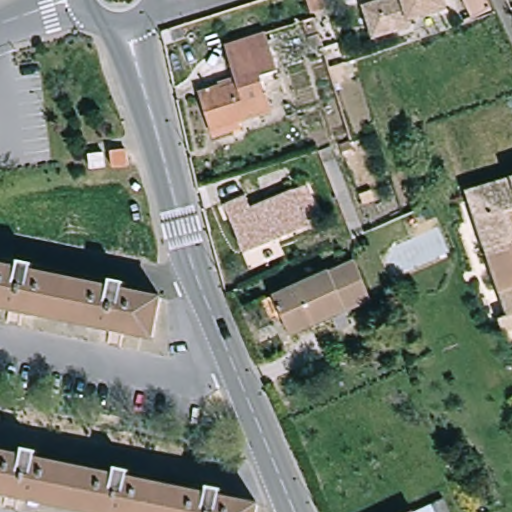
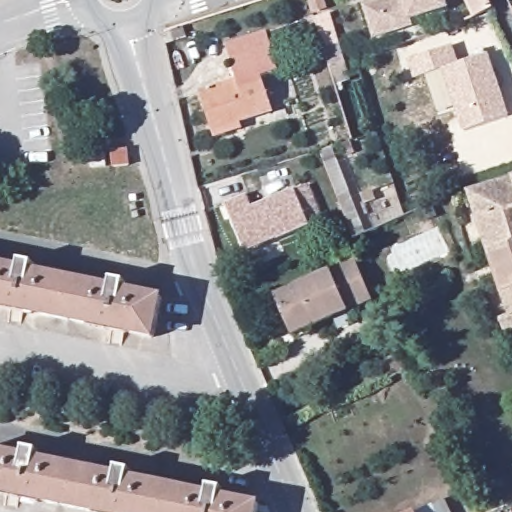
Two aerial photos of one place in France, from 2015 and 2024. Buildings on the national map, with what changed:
unchanged [(324,7),(314,10),(310,0),(321,0),(324,7)]
unchanged [(379,38),(369,5),(382,1),(387,0),(450,0),(453,8),(415,21),(417,26),(379,38)]
unchanged [(499,7),(479,17),(471,0),(495,0),(499,7)]
unchanged [(316,17),(320,33),(326,53),(320,55),(317,47),(312,49),(303,22),(316,17)]
unchanged [(271,33),(283,70),(266,76),(277,111),(217,130),(206,91),(225,85),(224,82),(242,76),(232,45),(271,33)]
new [(510,116),(464,130),(442,68),(415,78),(408,59),(453,45),(460,63),(487,51),(510,116)]
unchanged [(343,151),(341,146),(352,147),(343,151)]
new [(319,152),(332,147),(366,233),(353,238),(319,152)]
unchanged [(127,149),(129,165),(114,167),(112,150),(127,149)]
unchanged [(105,152),(106,166),(92,168),(90,154),(105,152)]
unchanged [(296,166),(301,180),(294,183),(289,168),(296,166)]
unchanged [(512,178),(512,240),(510,240),(488,245),(470,190),(512,178)]
unchanged [(249,255),(232,203),(250,195),(254,205),(299,190),(317,231),(249,255)]
unchanged [(510,240),(512,240),(512,286),(502,290),(488,245),(510,240)]
unchanged [(353,310),(297,336),(280,295),(335,270),(360,259),(368,277),(378,300),(353,310)]
unchanged [(0,310),(0,261),(129,287),(128,296),(164,302),(158,342),(0,310)]
unchanged [(512,286),(512,328),(505,331),(500,317),(510,313),(502,290),(512,286)]
unchanged [(89,512),(0,494),(0,453),(18,457),(20,448),(216,489),(215,497),(253,504),(251,512),(89,512)]
unchanged [(456,512),(420,512),(449,498),(456,512)]

